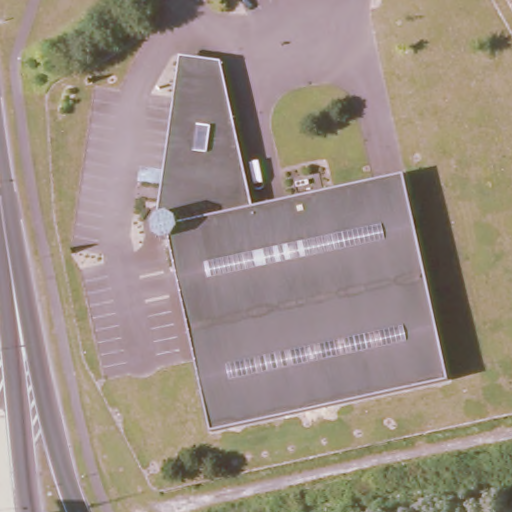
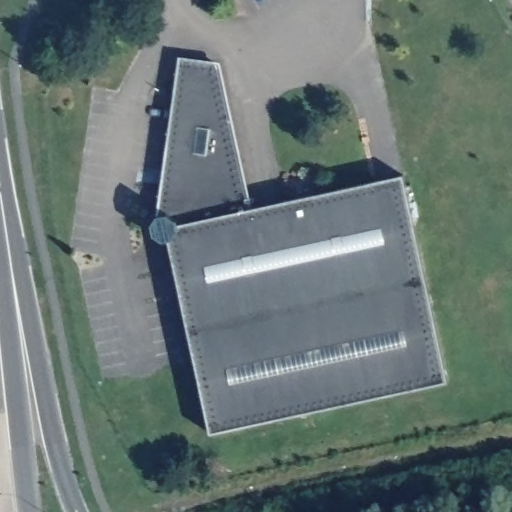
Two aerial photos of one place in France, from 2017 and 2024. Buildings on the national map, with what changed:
unchanged [(228,61),(255,205),(409,176),(448,384),(209,429),(172,234),(166,235),(158,229),(156,218),(161,209),(171,207),(194,67),(228,61)]

